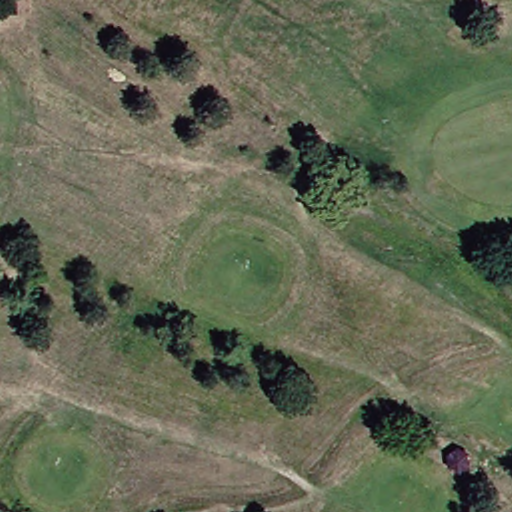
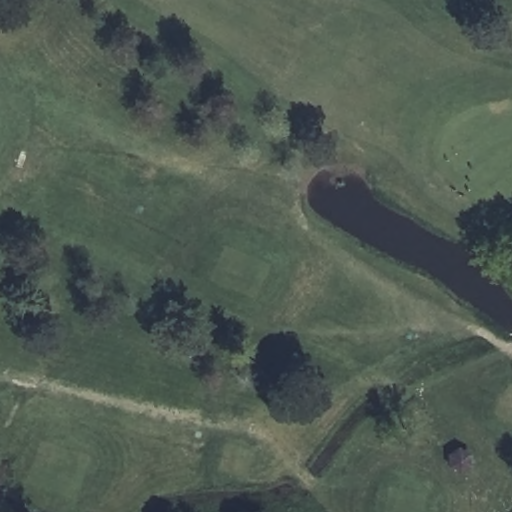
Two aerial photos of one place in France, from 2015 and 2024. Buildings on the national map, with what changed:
unchanged [(448,455),(458,448),(468,452),(469,464),(459,471),(449,466),(448,455)]

